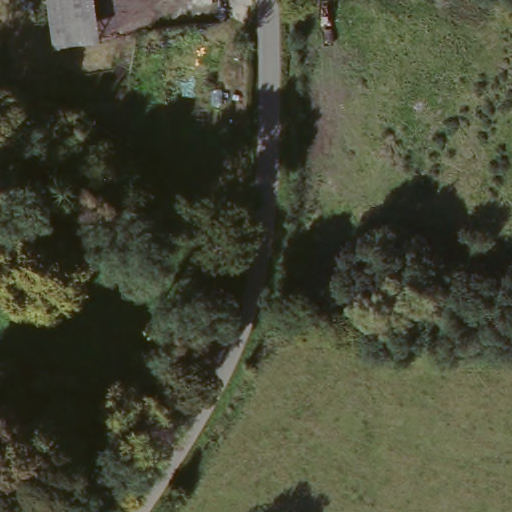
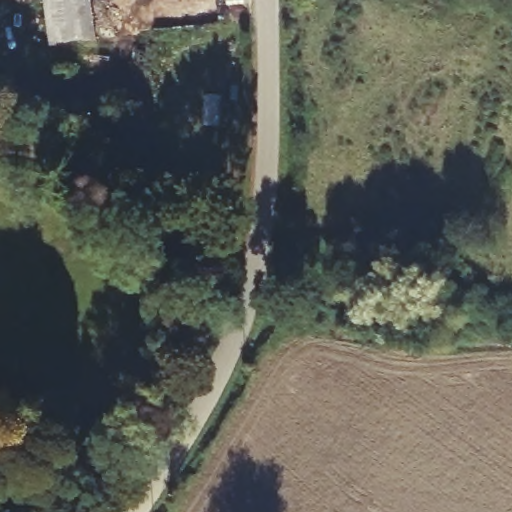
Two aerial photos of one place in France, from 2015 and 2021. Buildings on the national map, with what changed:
unchanged [(88,46),(49,49),(46,10),(45,0),(84,0),(85,16),(88,46)]

